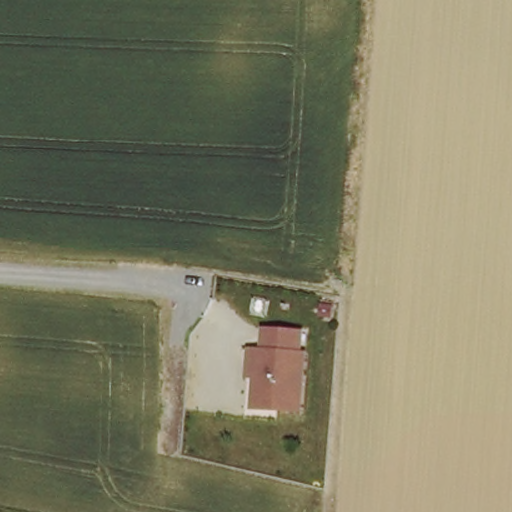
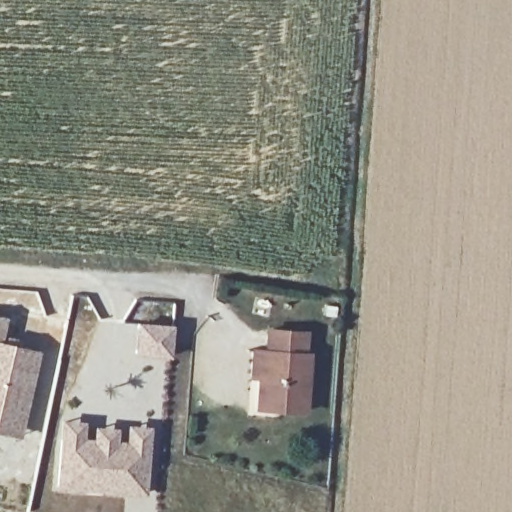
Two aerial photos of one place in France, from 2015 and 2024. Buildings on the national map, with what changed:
new [(8,315),(3,340),(0,341),(0,314),(8,315)]
unchanged [(299,334),(298,355),(303,356),(299,413),(252,409),(254,381),(247,380),(249,353),(242,352),(242,351),(261,353),(263,332),(299,334)]
new [(3,340),(41,349),(19,439),(0,434),(0,341),(3,340)]
new [(63,423),(82,424),(81,442),(95,443),(95,429),(115,432),(114,445),(128,446),(129,428),(148,429),(147,448),(144,494),(58,488),(63,423)]

